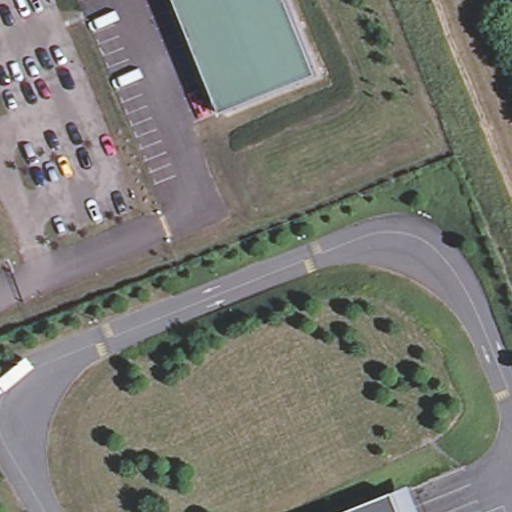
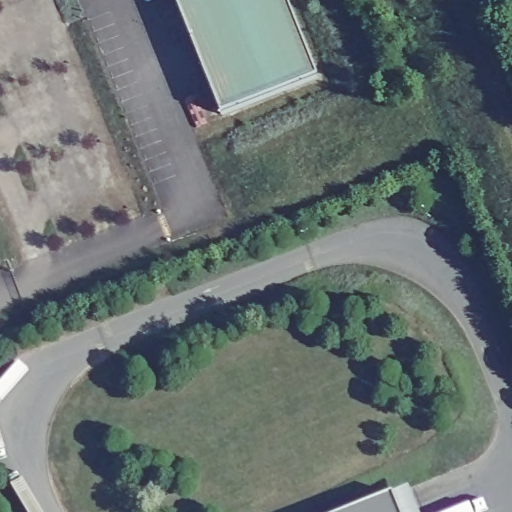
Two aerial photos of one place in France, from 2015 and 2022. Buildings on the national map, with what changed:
unchanged [(220,114),(174,0),(286,0),(316,75),(220,114)]
unchanged [(422,512),(403,512),(395,491),(411,484),(422,512)]
unchanged [(395,491),(403,512),(342,512),(395,491)]

